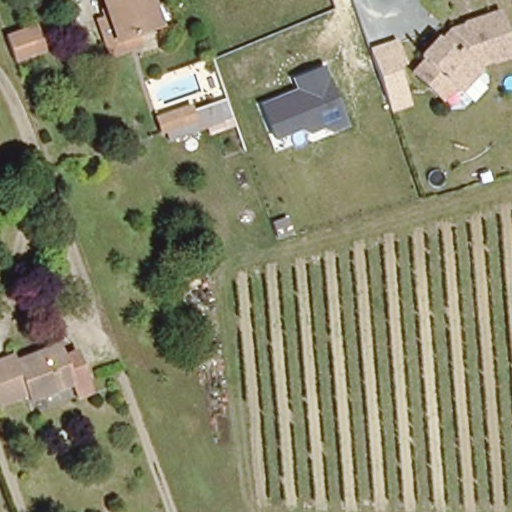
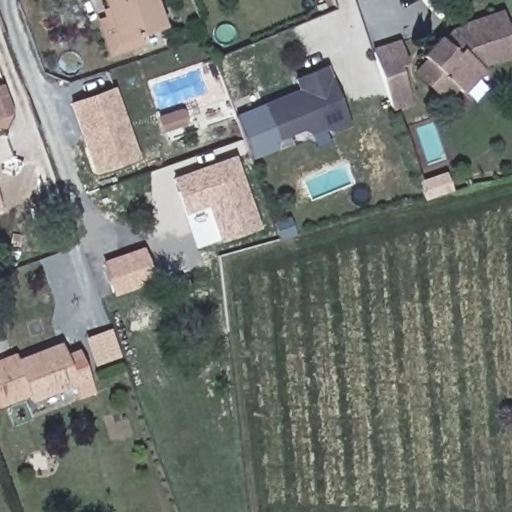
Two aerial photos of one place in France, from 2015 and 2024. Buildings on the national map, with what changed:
unchanged [(104,52),(91,12),(102,7),(100,0),(148,0),(156,24),(130,31),(134,44),(104,52)]
unchanged [(512,41),(512,61),(497,66),(496,64),(485,70),(465,94),(459,89),(445,101),(416,72),(428,60),(424,55),(440,39),(450,30),(502,10),(512,41)]
unchanged [(38,25),(47,51),(17,61),(8,35),(38,25)]
unchanged [(406,67),(401,69),(415,106),(393,114),(371,47),(397,39),(406,67)]
unchanged [(297,90),(292,77),(326,64),(351,128),(333,134),(325,130),(312,135),(302,132),(275,141),(261,104),(297,90)]
new [(68,102),(114,86),(140,159),(94,175),(68,102)]
new [(275,141),(278,139),(277,150),(249,161),(232,115),(261,104),(275,141)]
unchanged [(170,140),(164,125),(191,112),(195,118),(219,108),(224,118),(170,140)]
new [(261,228),(219,242),(207,206),(184,215),(171,177),(235,155),(261,228)]
new [(0,212),(0,198),(5,211),(0,212)]
new [(290,219),(295,235),(282,239),(277,224),(290,219)]
new [(158,282),(115,297),(100,262),(143,247),(158,282)]
unchanged [(28,399),(25,391),(0,399),(0,354),(7,352),(10,358),(57,345),(61,355),(73,350),(87,392),(72,397),(67,385),(28,399)]

